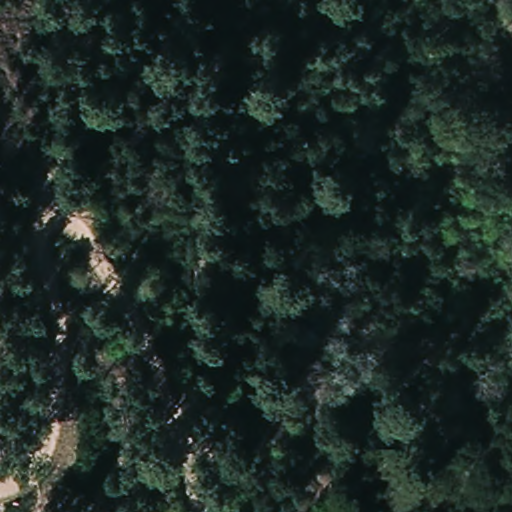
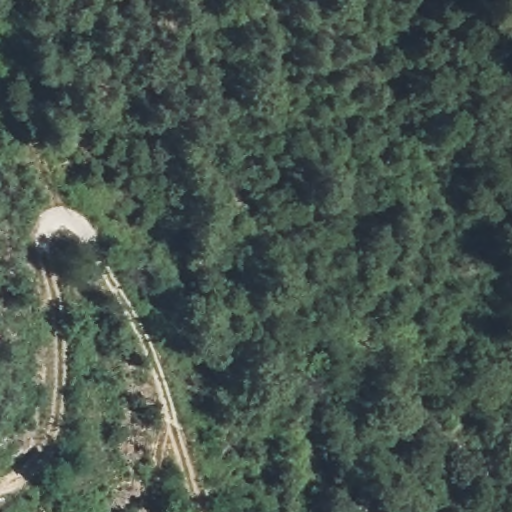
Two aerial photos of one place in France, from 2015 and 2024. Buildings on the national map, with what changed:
[]

